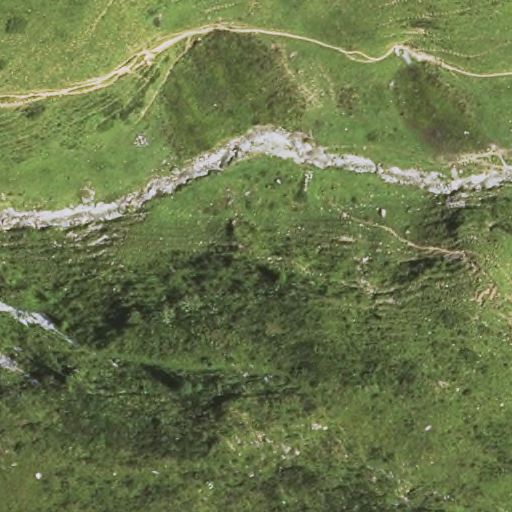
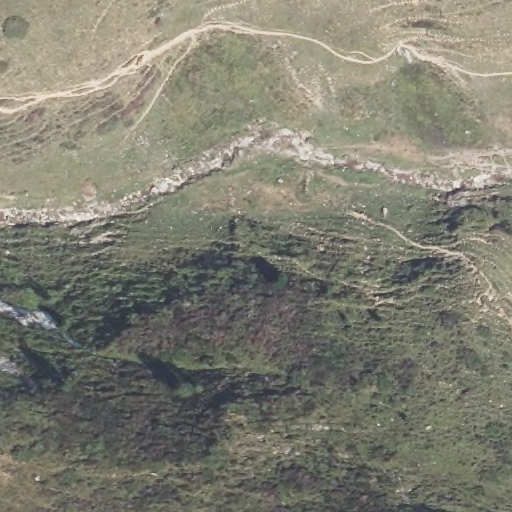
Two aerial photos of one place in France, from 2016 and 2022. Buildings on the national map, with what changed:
[]

